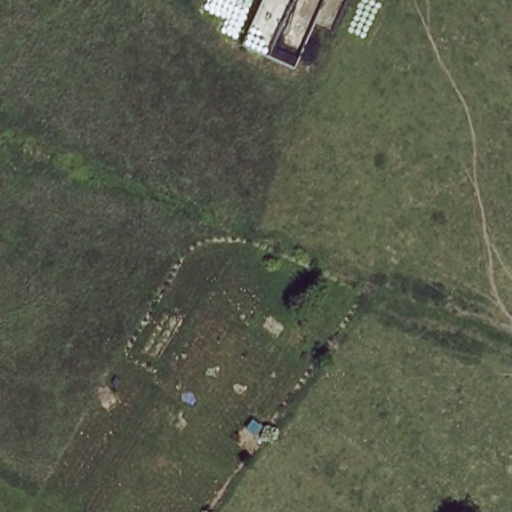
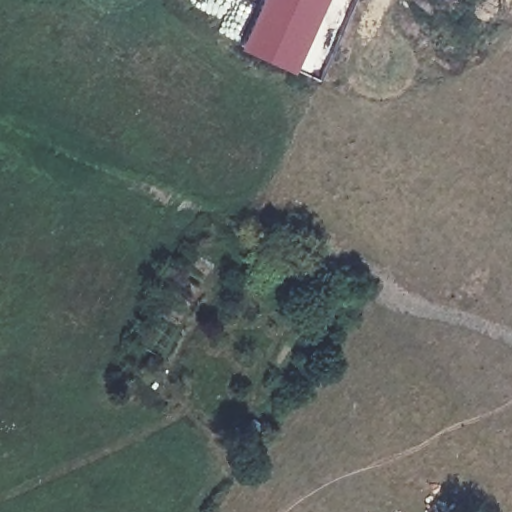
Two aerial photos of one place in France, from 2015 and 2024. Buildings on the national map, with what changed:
new [(291,71),(238,46),(259,0),(323,0),(291,71)]

